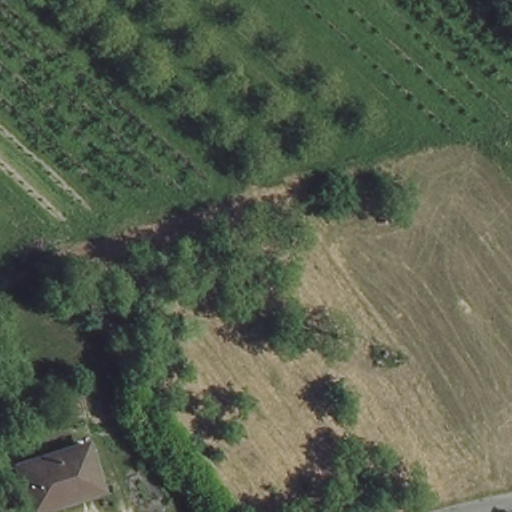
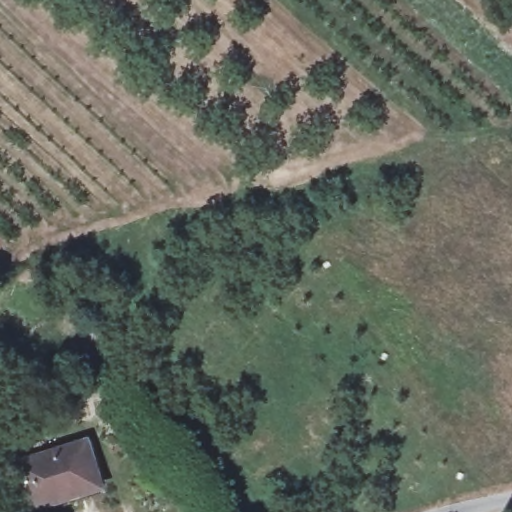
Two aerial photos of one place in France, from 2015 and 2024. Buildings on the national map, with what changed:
unchanged [(100,486),(29,506),(16,464),(86,443),(100,486)]

